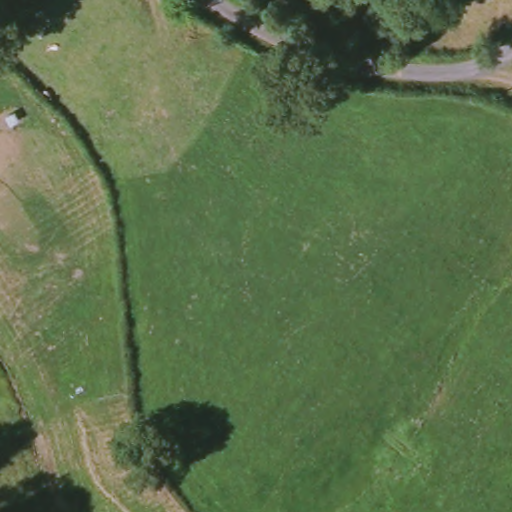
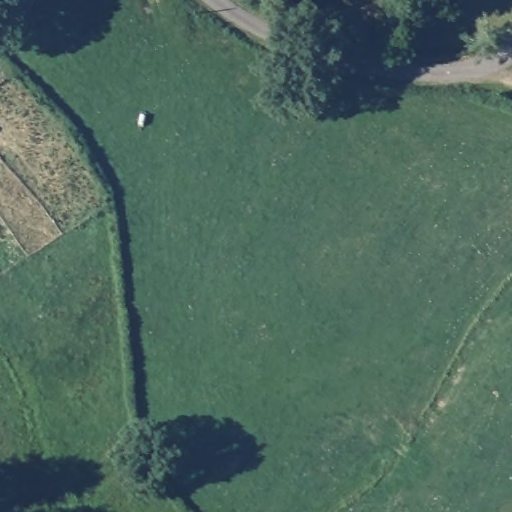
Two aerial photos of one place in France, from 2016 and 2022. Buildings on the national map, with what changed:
[]

